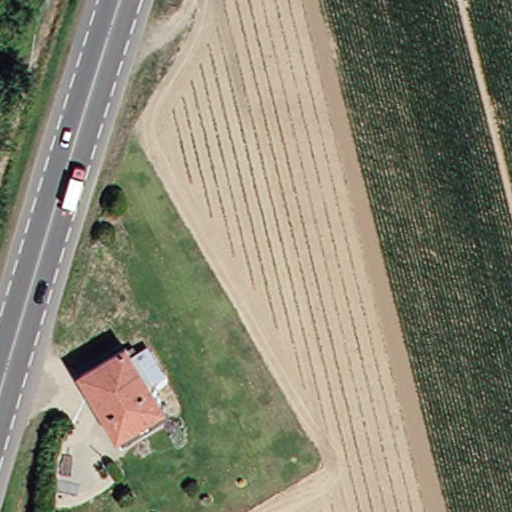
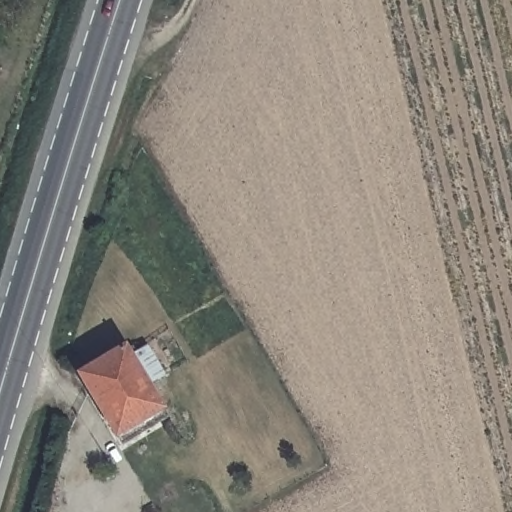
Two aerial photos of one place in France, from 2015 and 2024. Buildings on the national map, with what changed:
unchanged [(77,369),(121,342),(158,403),(114,430),(77,369)]

